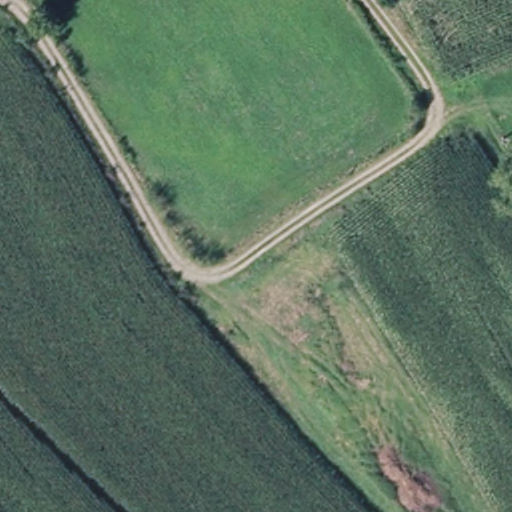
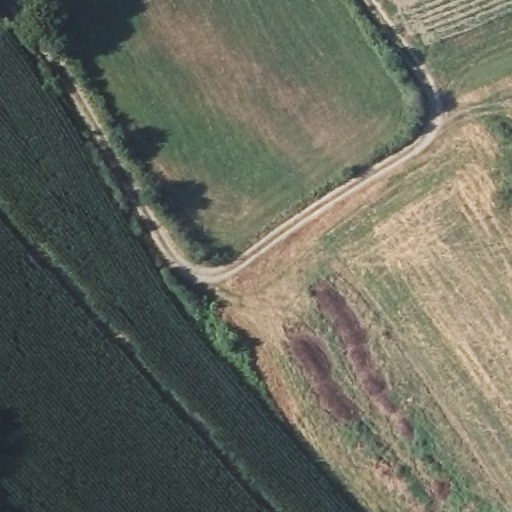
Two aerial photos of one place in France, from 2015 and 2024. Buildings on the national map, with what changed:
[]

